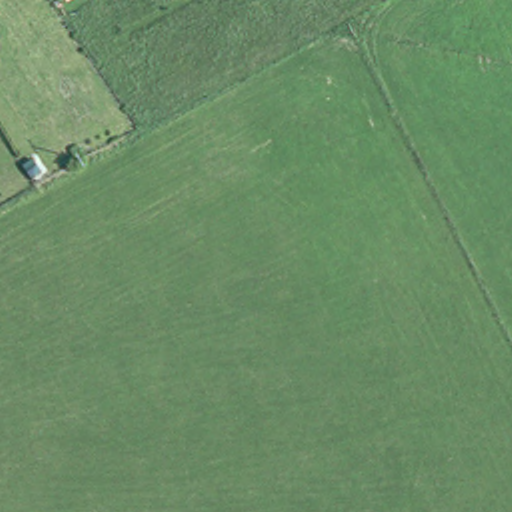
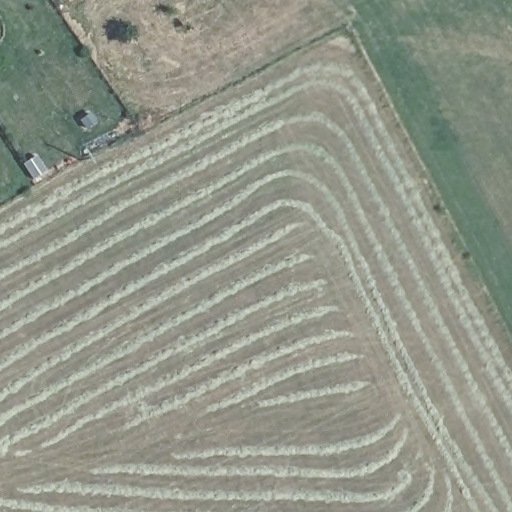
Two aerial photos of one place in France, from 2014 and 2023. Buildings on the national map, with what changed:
[]

